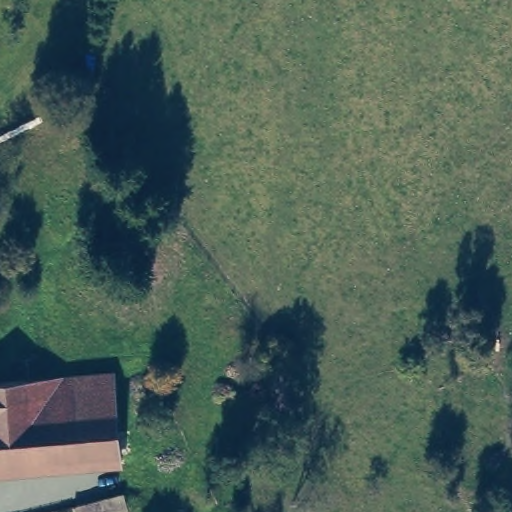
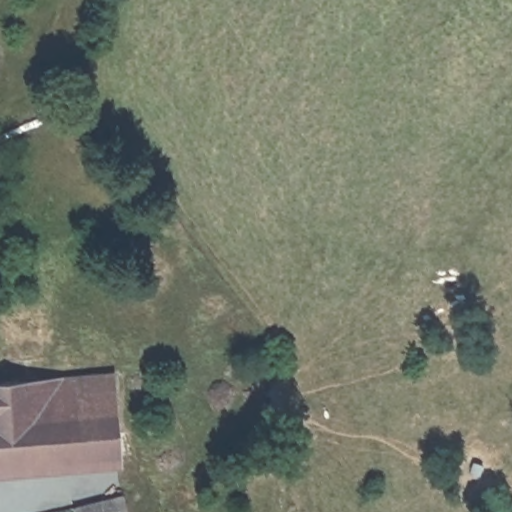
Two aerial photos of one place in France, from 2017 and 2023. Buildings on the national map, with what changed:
unchanged [(145,450),(0,463),(0,379),(140,369),(145,450)]
unchanged [(124,512),(79,512),(78,503),(123,501),(124,512)]

